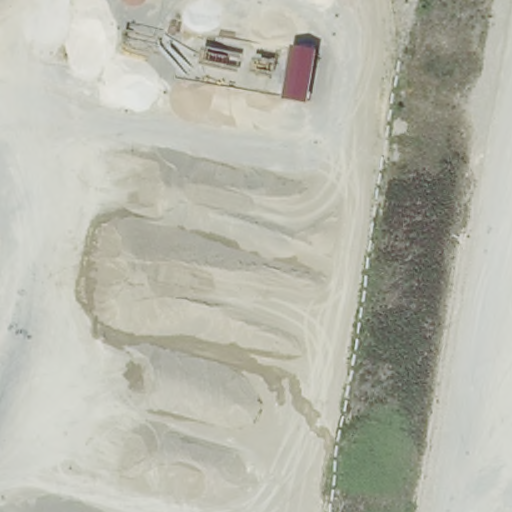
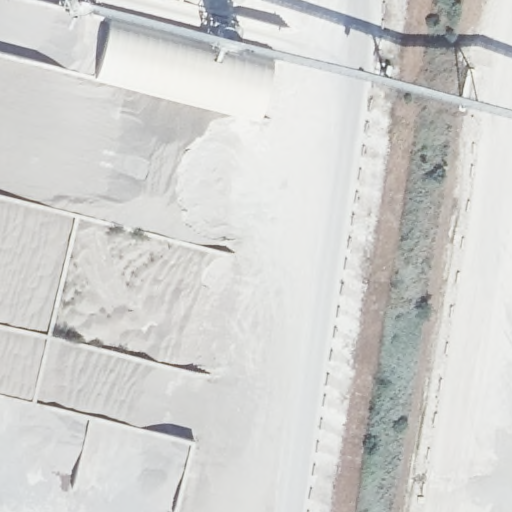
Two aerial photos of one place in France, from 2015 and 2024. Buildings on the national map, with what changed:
new [(97,80),(114,15),(277,60),(262,123),(97,80)]

